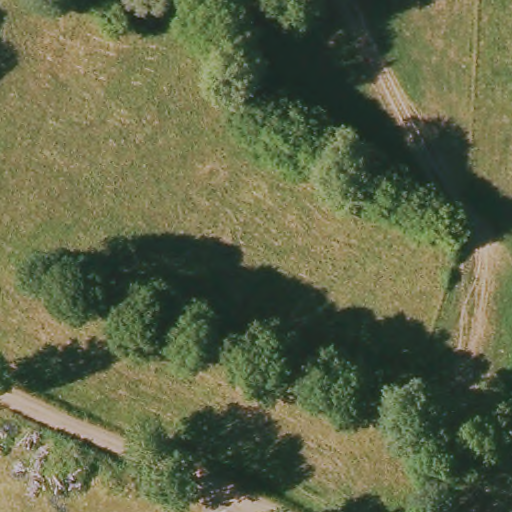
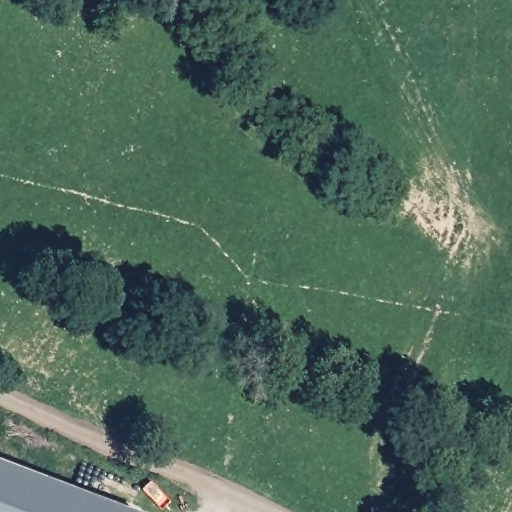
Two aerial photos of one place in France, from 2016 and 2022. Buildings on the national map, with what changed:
new [(136,512),(0,512),(0,461),(136,512)]

